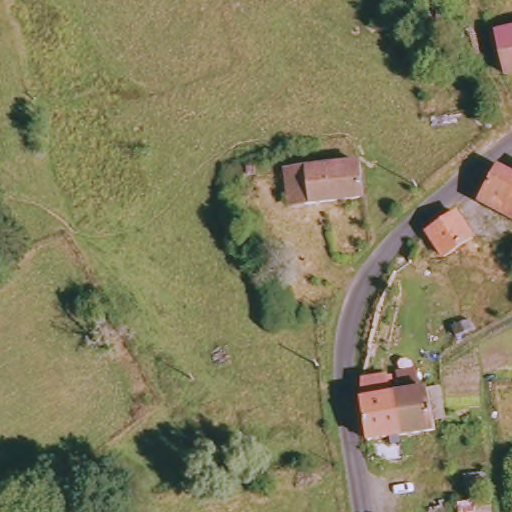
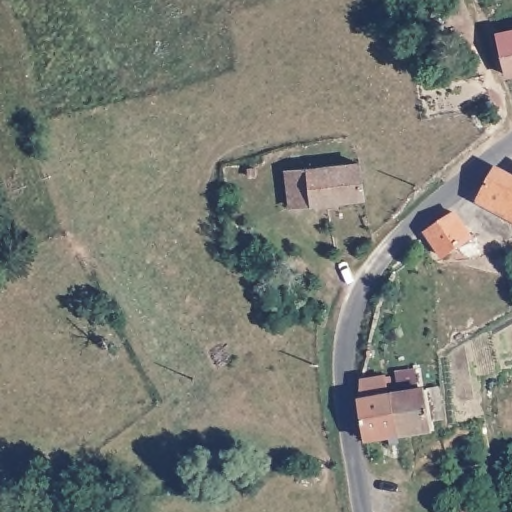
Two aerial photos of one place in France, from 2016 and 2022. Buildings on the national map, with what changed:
unchanged [(507,79),(497,40),(512,36),(512,78),(507,79)]
unchanged [(365,196),(286,206),(282,174),(358,162),(365,196)]
unchanged [(485,202),(499,173),(512,180),(512,219),(485,202)]
unchanged [(477,240),(455,261),(433,234),(455,217),(477,240)]
unchanged [(390,377),(390,400),(403,400),(405,433),(372,437),(365,378),(390,377)]
unchanged [(451,430),(405,433),(403,400),(447,400),(451,430)]
unchanged [(499,512),(464,512),(462,503),(474,503),(469,470),(493,469),(497,500),(499,512)]

